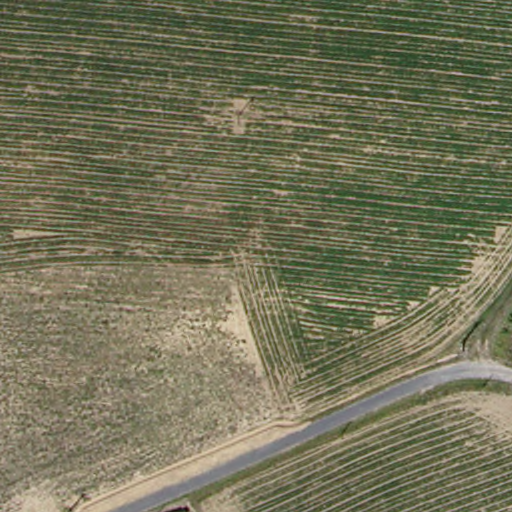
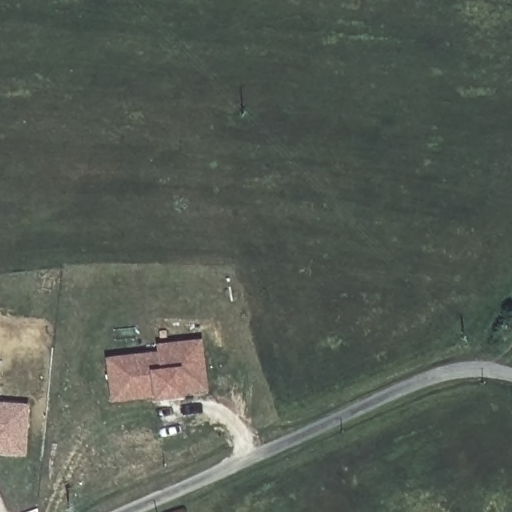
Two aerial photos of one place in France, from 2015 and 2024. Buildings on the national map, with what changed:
new [(105,359),(158,353),(157,345),(202,340),(207,393),(110,403),(105,359)]
new [(0,456),(0,402),(31,404),(27,458),(0,456)]

